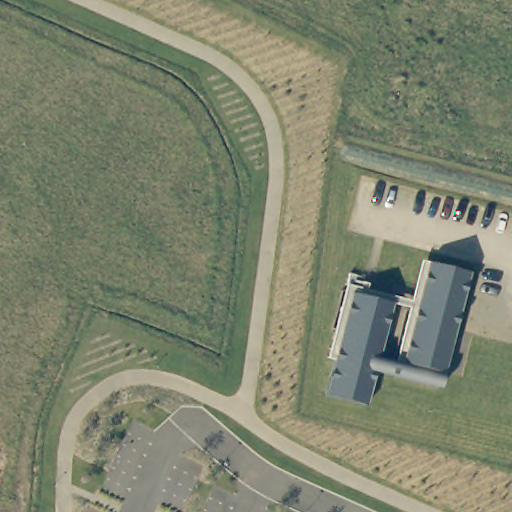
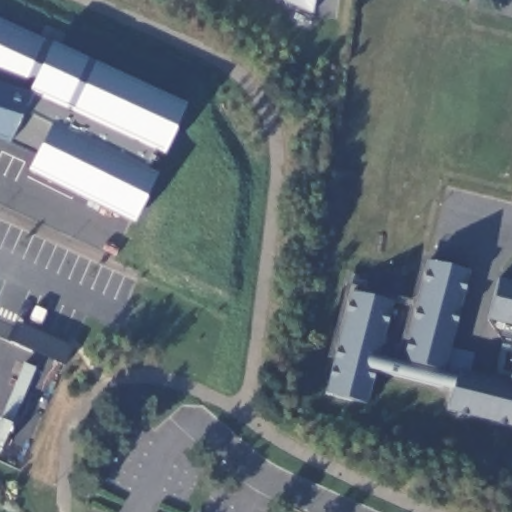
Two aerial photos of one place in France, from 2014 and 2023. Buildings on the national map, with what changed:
new [(312,16),(276,0),(314,0),(312,16)]
new [(9,145),(0,142),(0,21),(52,45),(185,105),(162,155),(154,150),(144,170),(156,175),(132,224),(27,171),(36,156),(9,145)]
unchanged [(384,372),(375,406),(335,395),(362,293),(403,305),(388,359),(412,365),(439,265),(480,275),(448,391),(384,372)]
unchanged [(488,320),(497,278),(512,282),(512,326),(488,320)]
new [(16,321),(73,347),(65,365),(7,340),(16,321)]
unchanged [(447,412),(458,368),(509,380),(512,369),(512,428),(447,412)]

